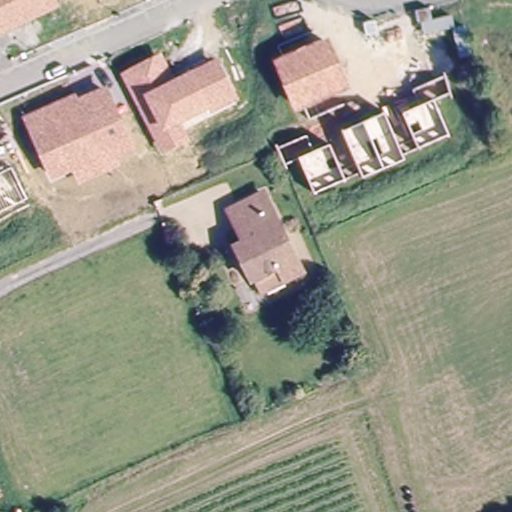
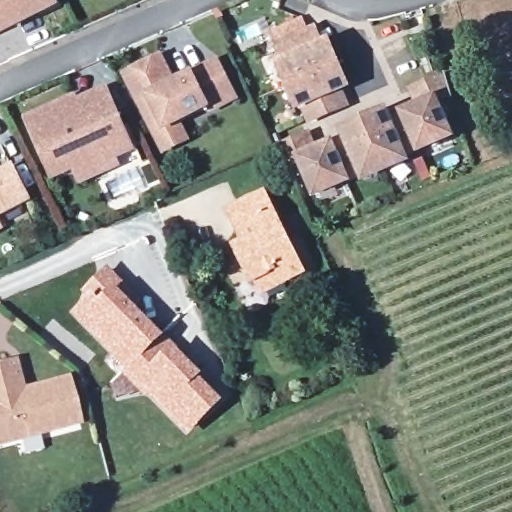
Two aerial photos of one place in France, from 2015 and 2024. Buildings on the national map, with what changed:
unchanged [(0,35),(0,0),(56,0),(60,7),(0,35)]
unchanged [(350,88),(295,110),(275,60),(328,37),(350,88)]
unchanged [(174,79),(193,69),(220,57),(240,99),(211,113),(209,108),(182,122),(191,141),(162,154),(121,74),(162,52),(174,79)]
unchanged [(445,76),(451,93),(436,99),(451,134),(420,147),(404,112),(421,105),(413,89),(445,76)]
unchanged [(79,97),(107,85),(137,152),(119,159),(121,166),(79,183),(72,169),(51,179),(22,116),(76,93),(79,97)]
unchanged [(405,159),(362,175),(343,129),(383,112),(405,159)]
unchanged [(313,151),(331,145),(345,180),(315,193),(299,157),(285,163),(278,146),(307,135),(313,151)]
unchanged [(28,199),(0,212),(0,173),(12,166),(28,199)]
unchanged [(257,278),(253,280),(237,246),(241,244),(245,242),(229,210),(263,193),(302,271),(285,279),(263,290),(257,278)]
new [(144,302),(139,307),(204,374),(201,377),(224,401),(190,435),(150,393),(147,397),(124,373),(127,369),(73,314),(89,299),(82,292),(109,266),(144,302)]
new [(22,390),(67,379),(79,423),(16,438),(12,424),(0,427),(0,365),(15,361),(22,390)]
new [(16,438),(79,423),(80,429),(42,439),(44,449),(21,454),(17,443),(0,447),(0,427),(12,424),(16,438)]

